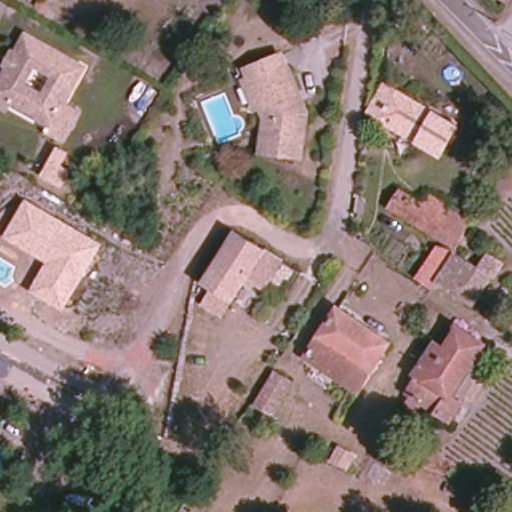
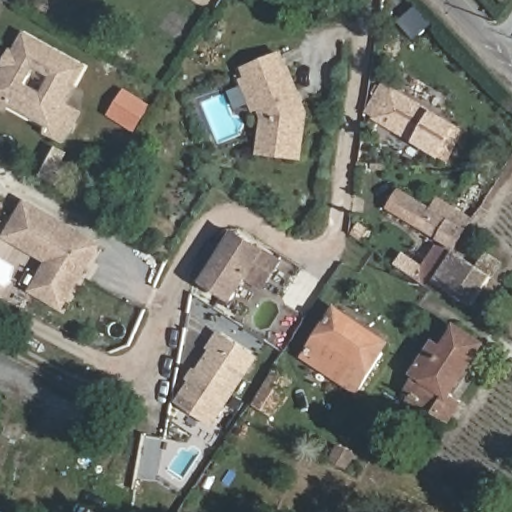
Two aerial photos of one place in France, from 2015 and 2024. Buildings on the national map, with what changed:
unchanged [(84,68),(64,105),(79,112),(62,141),(47,132),(51,126),(9,104),(6,110),(0,107),(0,76),(3,78),(26,36),(84,68)]
unchanged [(286,65),(290,64),(306,109),(299,152),(260,147),(265,112),(260,100),(254,102),(250,90),(244,76),(250,74),(247,63),(270,54),(280,50),(286,65)]
unchanged [(367,111),(383,85),(395,91),(455,128),(438,155),(367,111)]
new [(59,147),(67,153),(61,164),(70,169),(59,185),(42,175),(59,147)]
unchanged [(392,207),(401,193),(423,207),(429,198),(471,224),(456,248),(392,207)]
unchanged [(30,291),(46,261),(6,236),(27,197),(104,244),(64,310),(30,291)]
unchanged [(262,283),(246,272),(227,301),(199,282),(232,233),(276,262),(262,283)]
unchanged [(478,269),(487,256),(501,266),(492,279),(475,306),(437,281),(455,254),(478,269)]
unchanged [(392,343),(358,393),(305,358),(338,308),(392,343)]
unchanged [(421,415),(408,407),(417,395),(412,392),(422,378),(417,374),(438,342),(449,350),(464,327),(491,345),(444,413),(429,403),(421,415)]
new [(185,379),(192,367),(197,370),(210,350),(207,348),(219,330),(258,357),(212,427),(175,401),(189,382),(185,379)]
unchanged [(291,384),(271,414),(257,405),(277,375),(291,384)]
unchanged [(393,473),(386,486),(367,476),(374,463),(393,473)]

